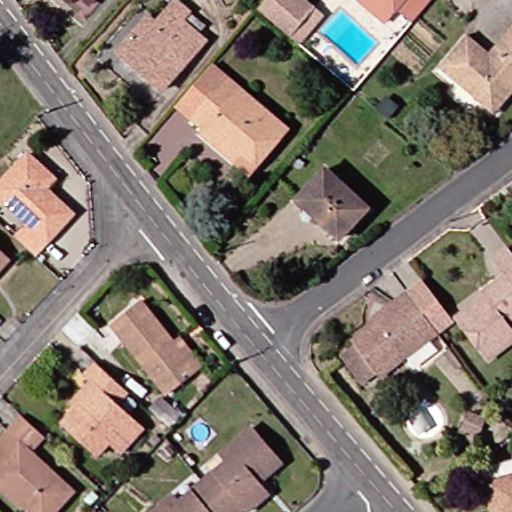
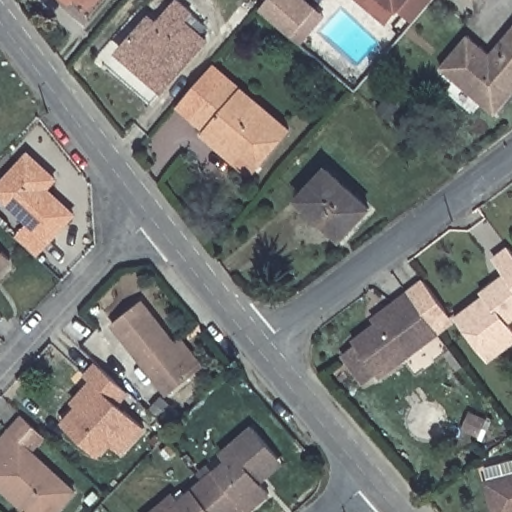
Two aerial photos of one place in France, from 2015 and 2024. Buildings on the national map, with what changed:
unchanged [(70,0),(68,2),(66,0),(70,0)]
unchanged [(194,11),(186,21),(210,41),(166,89),(122,51),(132,38),(148,19),(159,27),(180,0),(194,11)]
unchanged [(300,36),(268,8),(274,0),(307,0),(320,11),(309,25),(318,31),(308,43),(300,36)]
unchanged [(367,0),(364,4),(360,0),(367,0)]
unchanged [(383,0),(411,0),(400,14),(383,0)]
unchanged [(494,106),(445,66),(473,32),(496,51),(512,32),(512,101),(503,113),(494,106)]
unchanged [(197,131),(203,124),(189,113),(224,73),(287,126),(255,160),(244,171),(197,131)]
unchanged [(35,221),(2,190),(36,153),(61,179),(54,188),(80,212),(40,255),(19,236),(35,221)]
unchanged [(301,204),(310,193),(334,168),(376,208),(348,238),(346,235),(339,240),(301,204)]
unchanged [(509,323),(512,327),(512,342),(491,360),(459,319),(486,298),(483,294),(496,284),(498,288),(509,279),(493,259),(506,249),(512,256),(512,321),(509,323)]
unchanged [(0,270),(0,252),(9,260),(0,270)]
unchanged [(369,389),(347,361),(360,351),(357,347),(379,330),(372,321),(395,303),(406,295),(422,282),(447,314),(454,323),(438,336),(441,338),(385,382),(382,379),(369,389)]
unchanged [(206,368),(195,377),(170,396),(118,325),(148,305),(178,347),(186,341),(206,368)]
unchanged [(104,369),(124,386),(113,399),(138,421),(115,447),(108,441),(98,451),(71,427),(87,410),(81,404),(97,386),(93,383),(104,369)]
unchanged [(154,414),(167,402),(185,421),(174,432),(154,414)]
unchanged [(76,492),(57,512),(36,512),(0,477),(0,447),(28,419),(50,440),(36,455),(76,492)]
unchanged [(231,463),(224,454),(255,428),(281,460),(258,479),(274,499),(257,512),(252,512),(250,510),(248,512),(232,512),(207,483),(231,463)]
unchanged [(491,479),(487,466),(512,458),(512,512),(499,512),(491,479)]
unchanged [(177,496),(183,502),(207,483),(232,512),(157,512),(177,496)]

